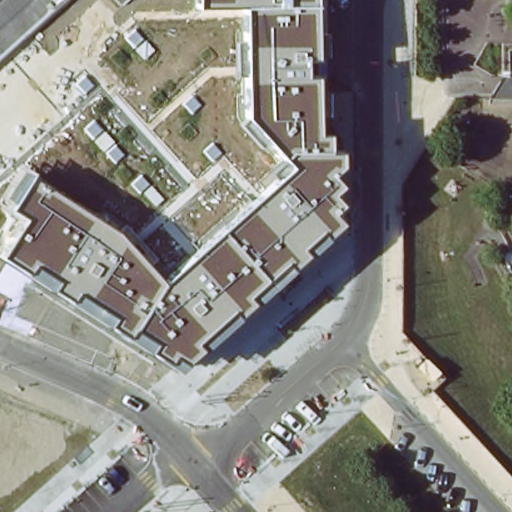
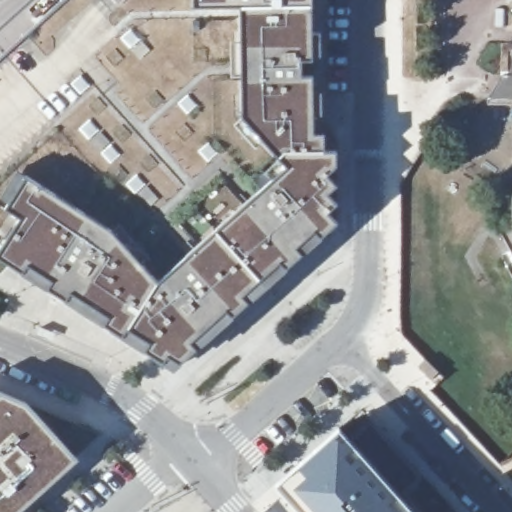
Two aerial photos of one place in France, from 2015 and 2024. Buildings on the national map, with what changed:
unchanged [(313,0),(313,56),(304,56),(304,76),(313,77),(314,133),(325,133),(325,150),(339,151),(338,165),(328,173),(337,184),(327,194),(337,203),(329,211),(337,221),(174,370),(0,257),(0,59),(65,0),(313,0)]
unchanged [(492,100),(503,76),(509,76),(509,49),(512,49),(512,101),(492,100)]
demolished [(270,347),(286,332),(295,341),(278,355),(270,347)]
new [(81,460),(19,512),(0,512),(0,391),(30,400),(81,460)]
new [(363,410),(425,478),(403,499),(414,512),(298,512),(275,486),(363,410)]

